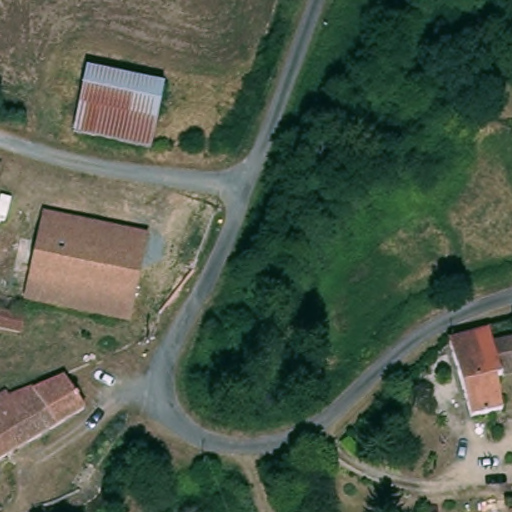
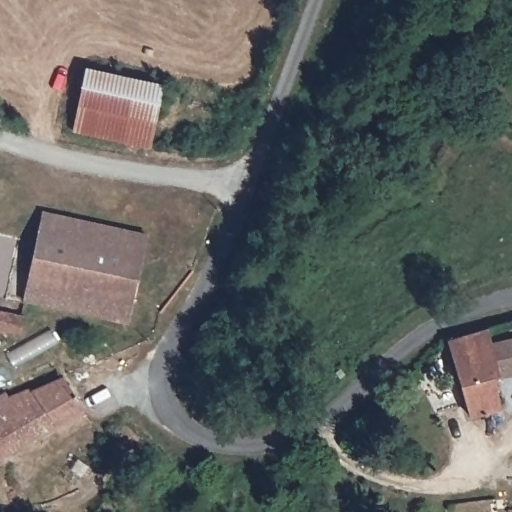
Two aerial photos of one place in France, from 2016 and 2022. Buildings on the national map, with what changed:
unchanged [(82,66),(162,84),(148,150),(67,135),(82,66)]
unchanged [(127,324),(24,301),(44,213),(146,236),(127,324)]
unchanged [(24,317),(20,334),(0,330),(0,312),(24,317)]
unchanged [(449,341),(488,330),(501,377),(495,379),(501,411),(471,418),(451,348),(450,346),(449,341)]
unchanged [(0,459),(0,392),(4,390),(7,396),(33,388),(35,391),(63,378),(84,410),(0,459)]

